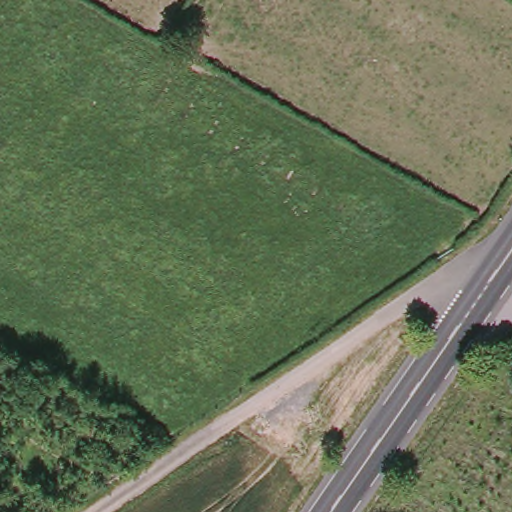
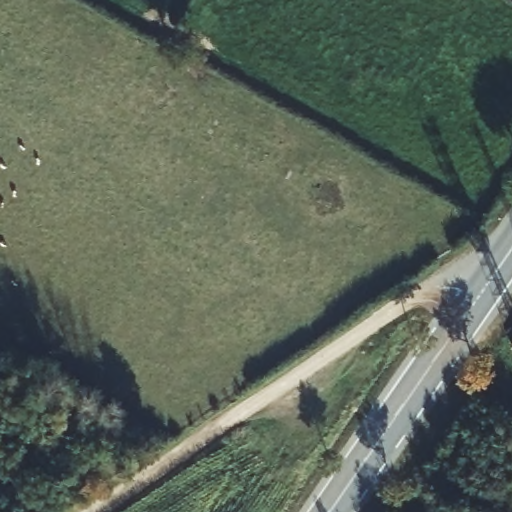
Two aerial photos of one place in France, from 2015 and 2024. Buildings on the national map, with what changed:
unchanged [(510,348),(512,345),(512,349),(510,348)]

